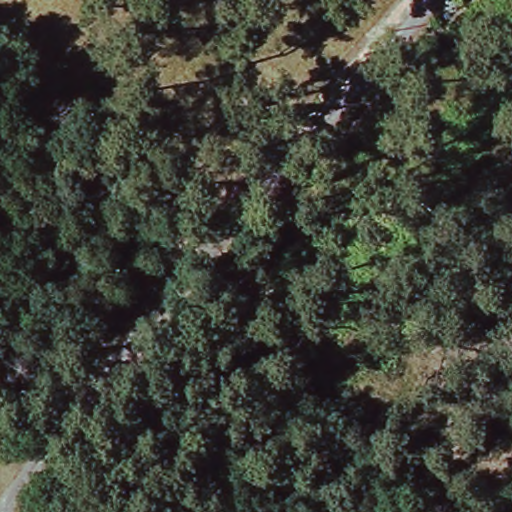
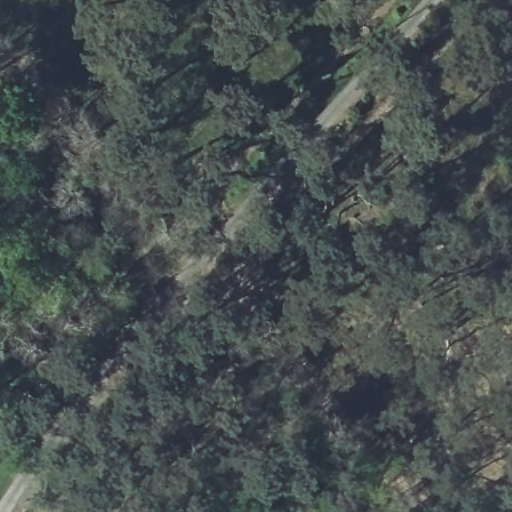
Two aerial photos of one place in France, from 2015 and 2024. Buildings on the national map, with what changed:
unchanged [(191,510),(191,512),(171,512),(171,511),(191,510)]

